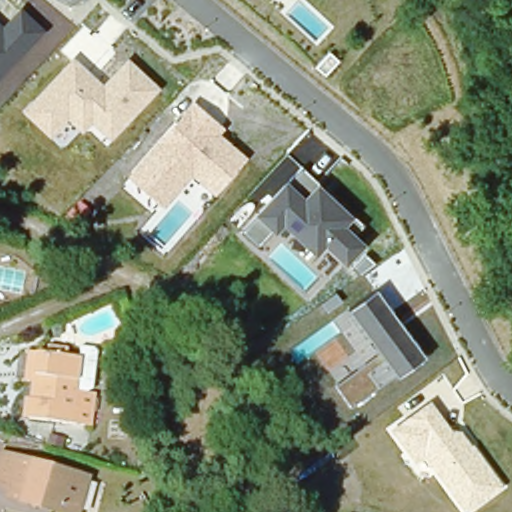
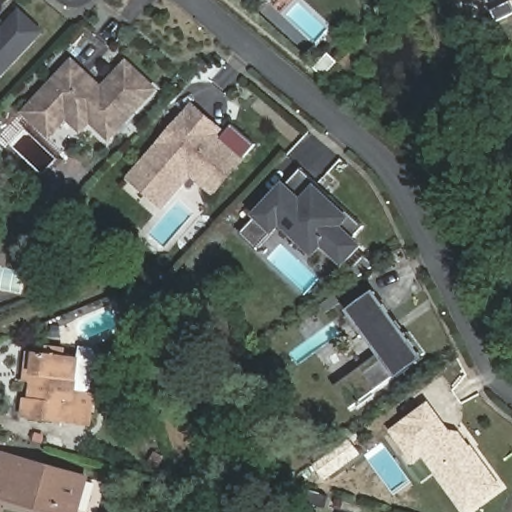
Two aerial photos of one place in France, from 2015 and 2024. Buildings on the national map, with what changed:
unchanged [(4,26),(20,7),(45,30),(0,77),(0,23),(4,26)]
unchanged [(112,142),(91,124),(82,132),(70,121),(52,138),(23,111),(72,57),(102,82),(127,58),(161,88),(112,142)]
unchanged [(215,196),(192,175),(165,209),(127,177),(192,101),(226,129),(220,135),(247,159),(215,196)]
unchanged [(291,179),(302,168),(318,183),(316,183),(353,217),(353,216),(363,224),(357,232),(355,234),(366,244),(347,264),(325,245),(323,247),(316,256),(285,224),(276,232),(271,232),(257,247),(242,232),(257,216),(256,215),(285,181),(291,179)]
unchanged [(427,357),(400,376),(396,376),(352,407),(337,386),(382,354),(381,354),(369,337),(369,338),(363,342),(343,313),(348,310),(350,310),(377,289),(427,357)]
unchanged [(23,399),(31,400),(34,373),(25,372),(27,351),(37,352),(76,357),(77,345),(91,347),(94,351),(90,387),(83,390),(91,391),(86,426),(29,417),(21,417),(23,399)]
unchanged [(467,512),(465,512),(424,457),(415,465),(392,428),(431,401),(452,429),(462,430),(472,446),(476,444),(504,487),(467,512)]
unchanged [(154,467),(142,461),(147,448),(161,456),(154,467)]
unchanged [(75,512),(56,512),(4,497),(6,487),(0,486),(0,455),(1,453),(86,477),(75,512)]

